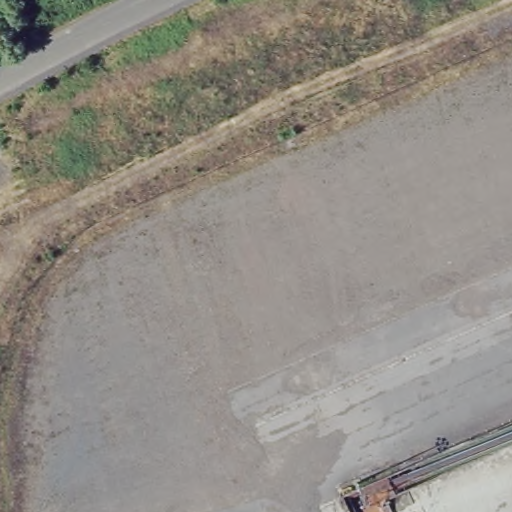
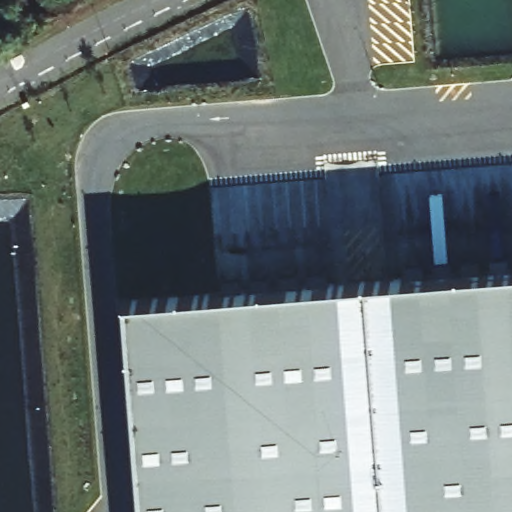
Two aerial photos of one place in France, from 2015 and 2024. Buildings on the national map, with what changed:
new [(512,281),(512,512),(126,512),(110,310),(512,281)]

